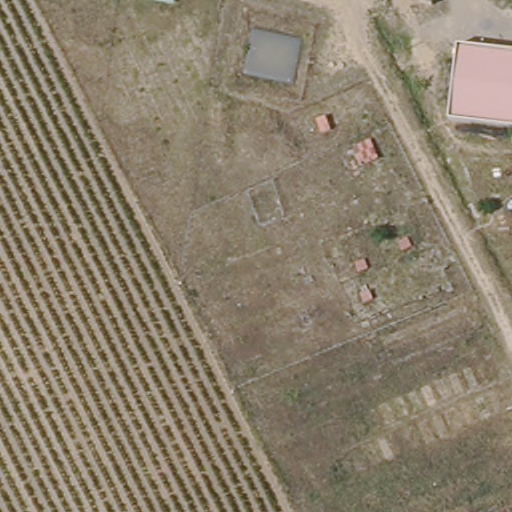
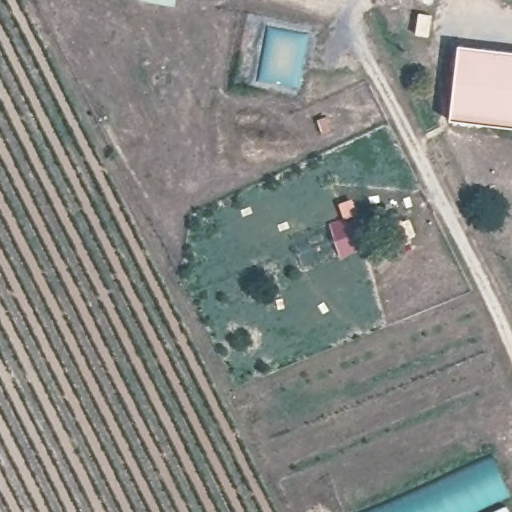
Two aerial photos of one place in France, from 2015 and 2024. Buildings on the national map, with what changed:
unchanged [(512,54),(512,131),(450,123),(460,50),(512,54)]
new [(328,222),(346,216),(343,207),(352,204),(356,214),(367,247),(339,256),(328,222)]
new [(506,492),(462,512),(364,512),(490,454),(506,492)]

